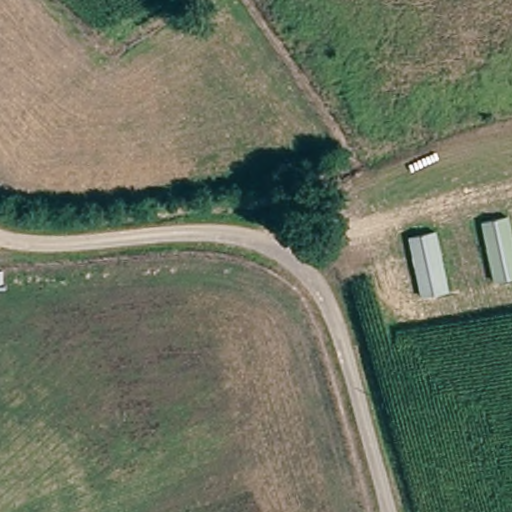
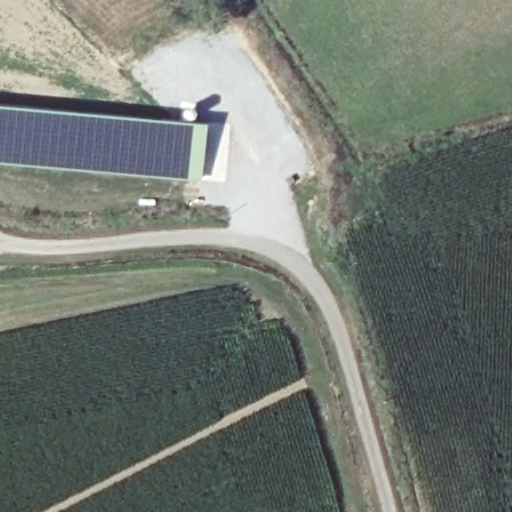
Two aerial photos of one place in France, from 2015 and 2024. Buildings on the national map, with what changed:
new [(151,119),(225,123),(221,143),(207,141),(202,181),(186,181),(0,164),(0,105),(151,119)]
unchanged [(512,289),(507,290),(493,231),(512,225),(512,289)]
unchanged [(450,238),(462,298),(433,304),(420,243),(450,238)]

